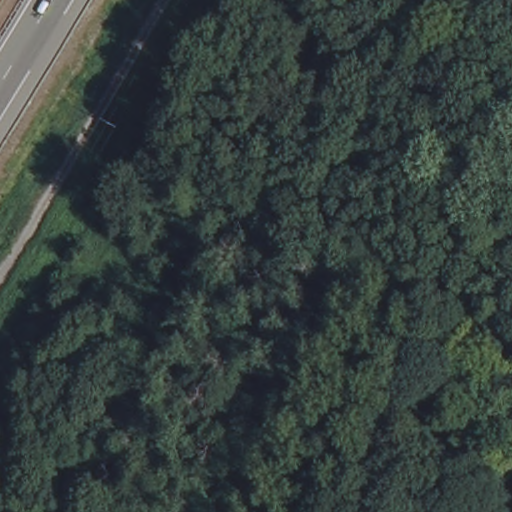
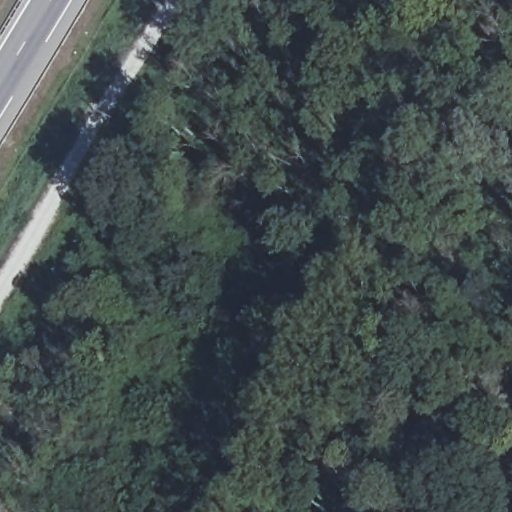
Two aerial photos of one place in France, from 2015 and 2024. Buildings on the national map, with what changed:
[]

